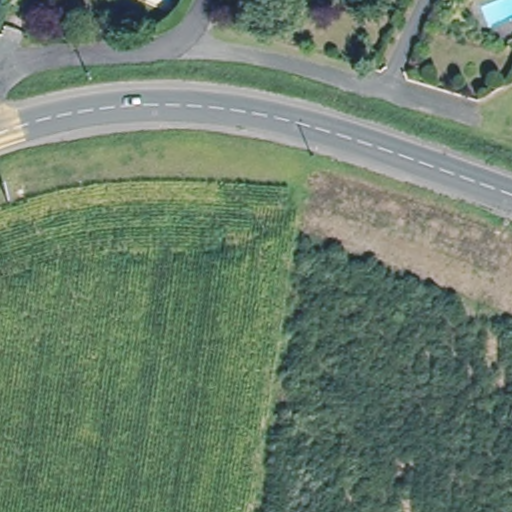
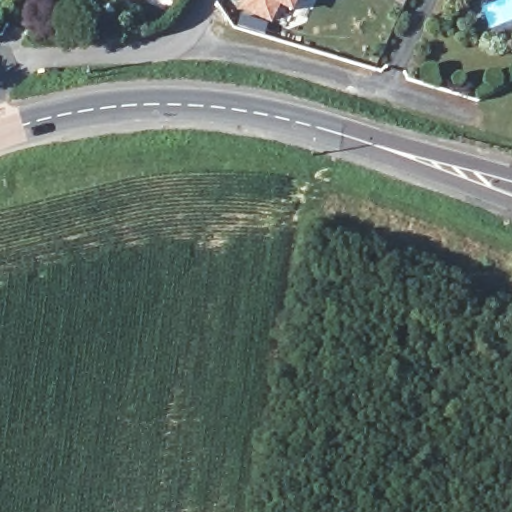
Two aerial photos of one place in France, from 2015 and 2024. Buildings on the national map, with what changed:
new [(295,14),(280,7),(272,23),(241,9),(245,0),(301,0),(295,14)]

